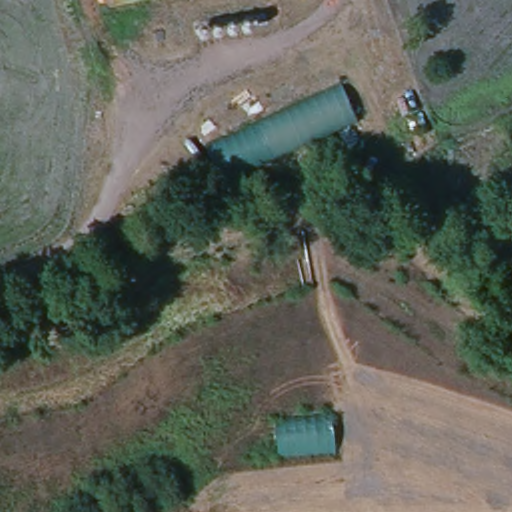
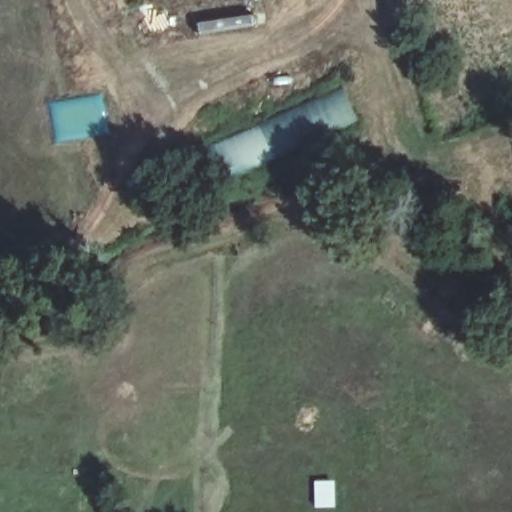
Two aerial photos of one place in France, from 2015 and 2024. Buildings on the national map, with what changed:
unchanged [(110,0),(117,0),(110,1),(110,0)]
unchanged [(209,148),(341,85),(358,125),(221,181),(209,148)]
demolished [(279,459),(275,420),(335,412),(338,453),(279,459)]

